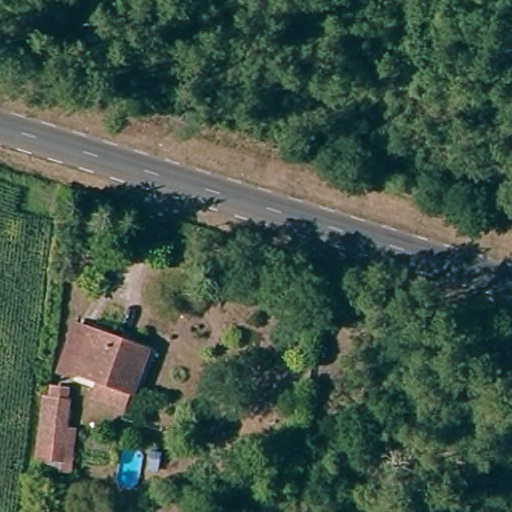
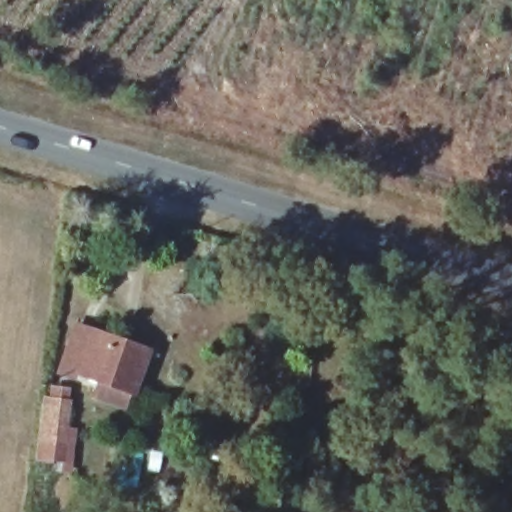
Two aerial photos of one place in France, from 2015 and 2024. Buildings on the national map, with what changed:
unchanged [(127,395),(126,395),(120,410),(89,398),(94,383),(71,375),(69,379),(53,374),(70,328),(142,355),(127,395)]
unchanged [(51,406),(66,409),(64,421),(66,421),(60,467),(34,462),(41,417),(49,418),(51,406)]

